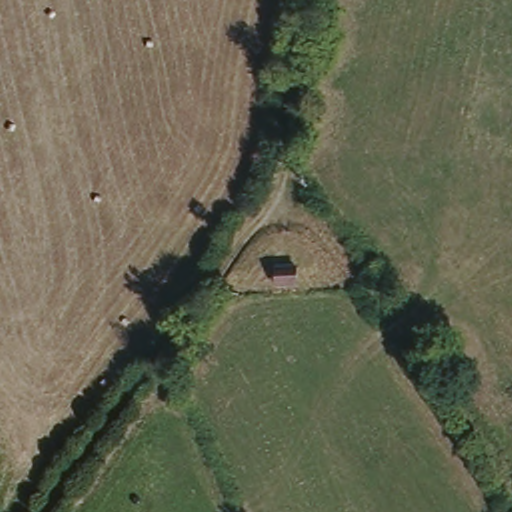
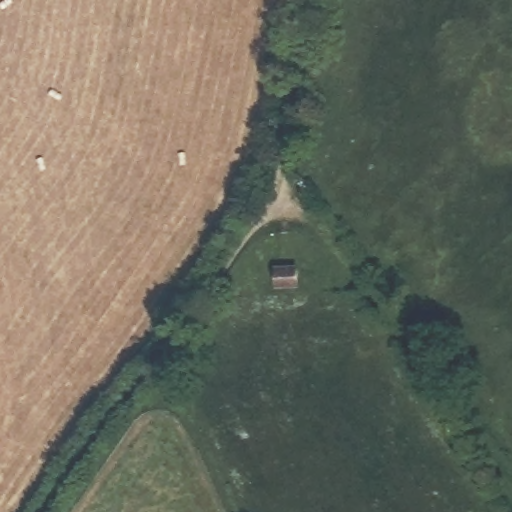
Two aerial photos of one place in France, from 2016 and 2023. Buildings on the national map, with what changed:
unchanged [(300,269),(297,286),(276,286),(276,270),(300,269)]

